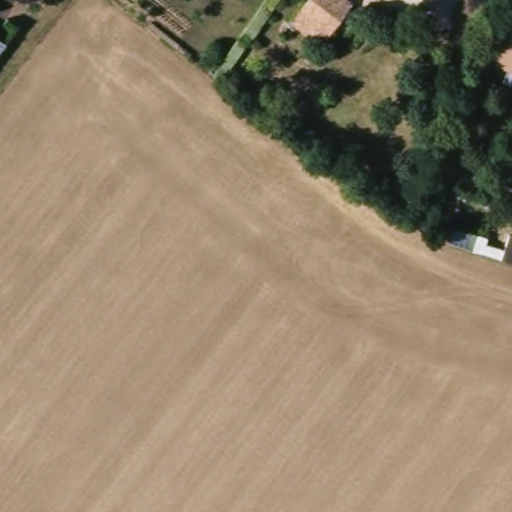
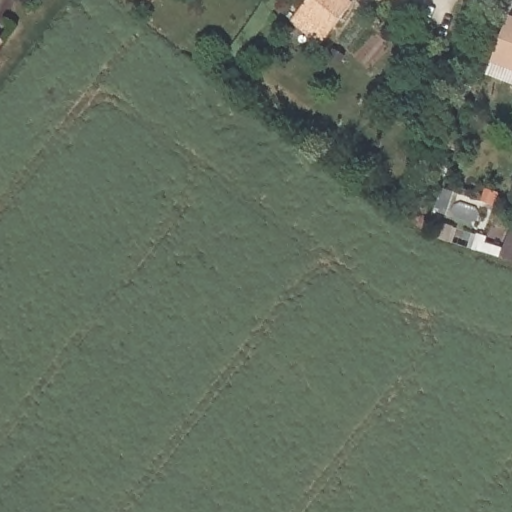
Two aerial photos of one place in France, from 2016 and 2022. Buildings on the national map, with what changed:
unchanged [(302,9),(308,0),(356,0),(332,32),(326,40),(296,16),(302,9)]
unchanged [(487,61),(503,17),(512,20),(512,71),(487,61)]
unchanged [(0,47),(0,39),(4,42),(0,47)]
unchanged [(500,258),(509,234),(512,235),(512,262),(500,258)]

